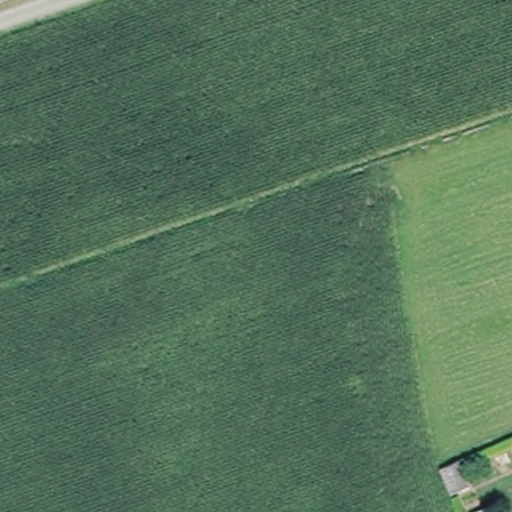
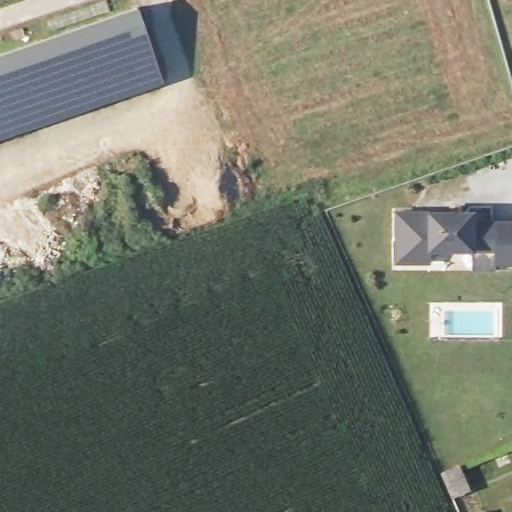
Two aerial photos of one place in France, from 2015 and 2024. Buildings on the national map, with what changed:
new [(135,7),(160,82),(0,136),(0,53),(135,7)]
new [(470,220),(494,220),(494,225),(512,225),(512,260),(494,260),(494,247),(427,247),(427,260),(395,261),(394,211),(470,210),(470,220)]
new [(495,270),(472,270),(472,247),(494,247),(494,260),(512,260),(512,264),(496,265),(495,270)]
new [(463,467),(472,490),(458,495),(449,473),(463,467)]

